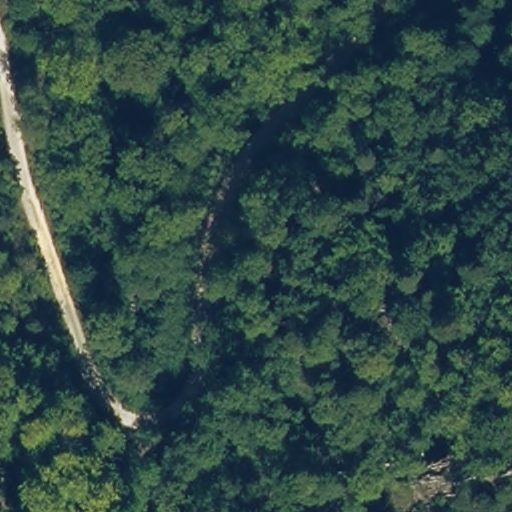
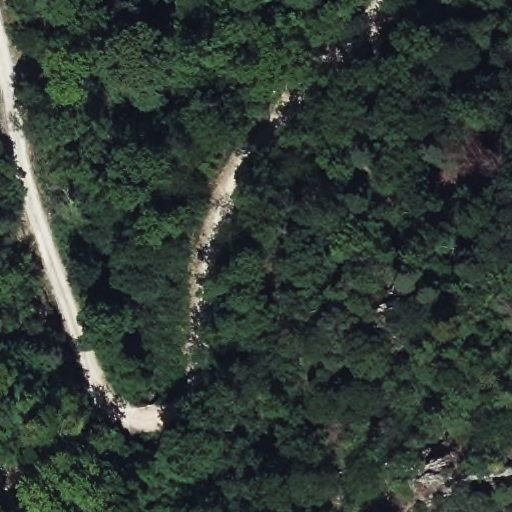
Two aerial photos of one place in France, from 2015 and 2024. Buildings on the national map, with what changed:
[]

